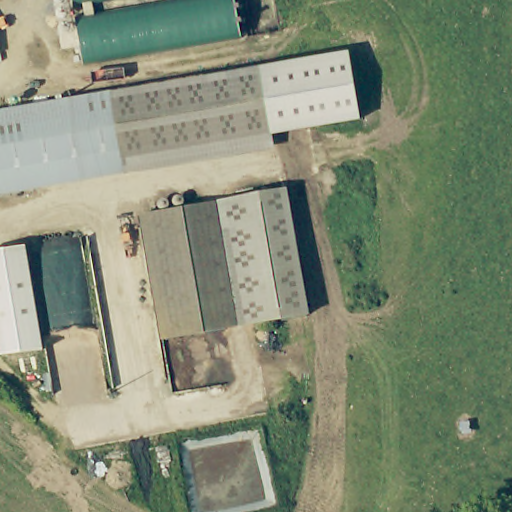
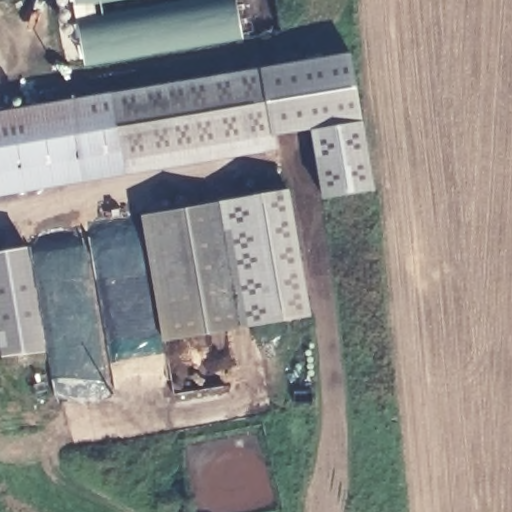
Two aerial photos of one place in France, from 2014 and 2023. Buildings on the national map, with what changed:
unchanged [(72,0),(94,0),(72,4),(72,0)]
unchanged [(77,17),(180,0),(237,0),(244,38),(86,65),(77,17)]
unchanged [(349,50),(361,120),(272,135),(275,150),(0,197),(0,182),(120,160),(120,156),(270,130),(257,65),(349,50)]
unchanged [(110,93),(257,65),(270,130),(120,156),(110,93)]
unchanged [(109,91),(110,93),(120,156),(120,160),(0,182),(0,113),(109,91)]
new [(311,129),(361,120),(374,187),(321,197),(311,129)]
unchanged [(287,190),(310,316),(234,330),(155,344),(132,217),(287,190)]
unchanged [(26,246),(43,350),(1,356),(0,353),(0,250),(26,246)]

